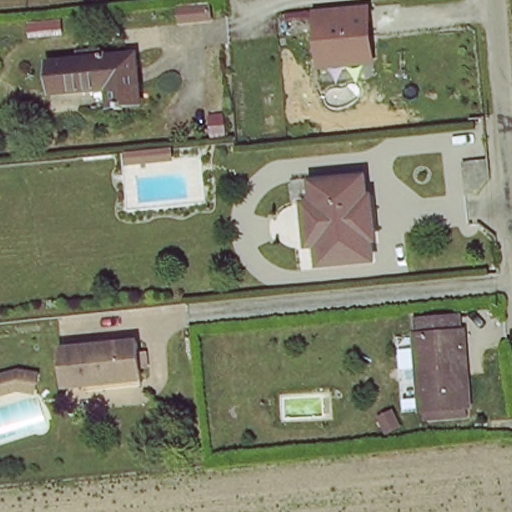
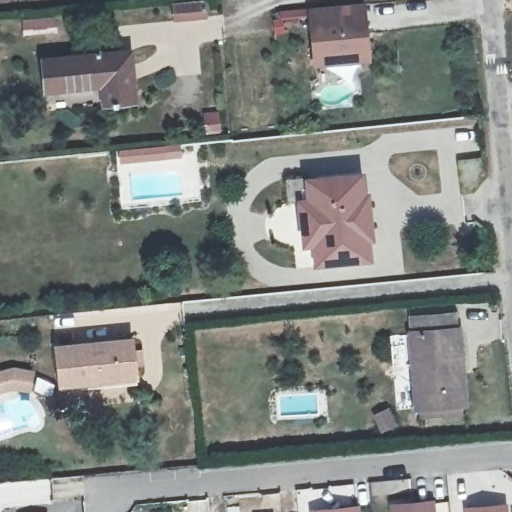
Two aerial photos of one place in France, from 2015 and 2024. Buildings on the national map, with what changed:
unchanged [(369,60),(309,66),(303,7),(363,3),(369,60)]
unchanged [(104,79),(47,83),(44,54),(132,48),(135,97),(105,99),(104,79)]
unchanged [(364,191),(369,231),(374,230),(376,252),(324,258),(321,237),(311,238),(307,196),(317,195),(315,174),(367,169),(369,191),(364,191)]
unchanged [(417,313),(459,310),(461,330),(465,330),(469,409),(419,411),(418,333),(417,313)]
unchanged [(136,378),(62,387),(58,346),(132,337),(136,378)]
new [(434,500),(435,512),(391,512),(390,504),(434,500)]
new [(507,503),(507,512),(466,512),(465,506),(507,503)]
new [(359,505),(360,512),(310,512),(310,510),(359,505)]

